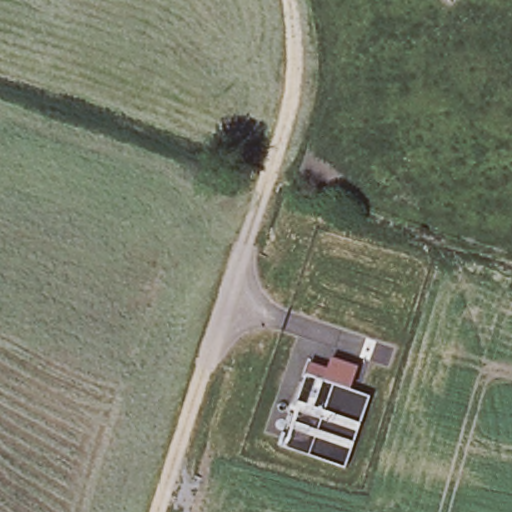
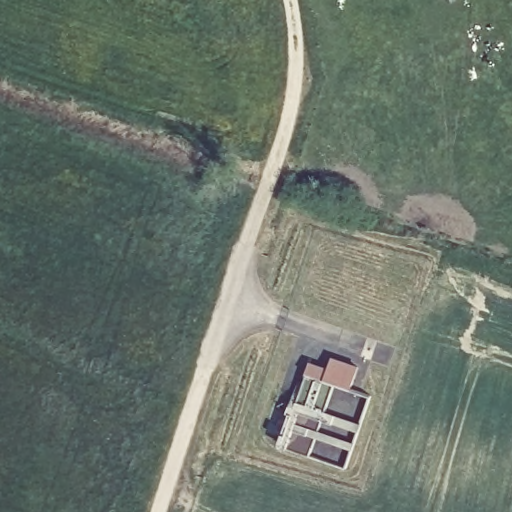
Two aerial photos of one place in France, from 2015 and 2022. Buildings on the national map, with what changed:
unchanged [(282,446),(310,360),(330,366),(333,358),(358,367),(351,390),(370,397),(347,468),(282,446)]

